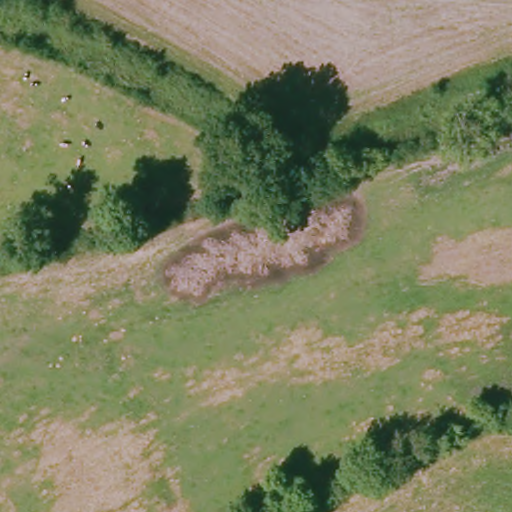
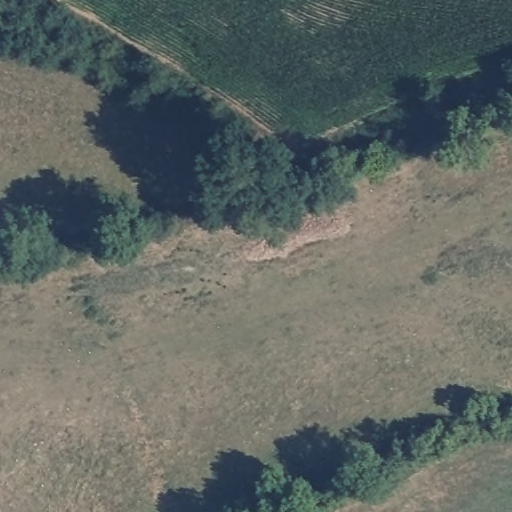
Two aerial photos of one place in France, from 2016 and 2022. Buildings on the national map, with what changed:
[]

